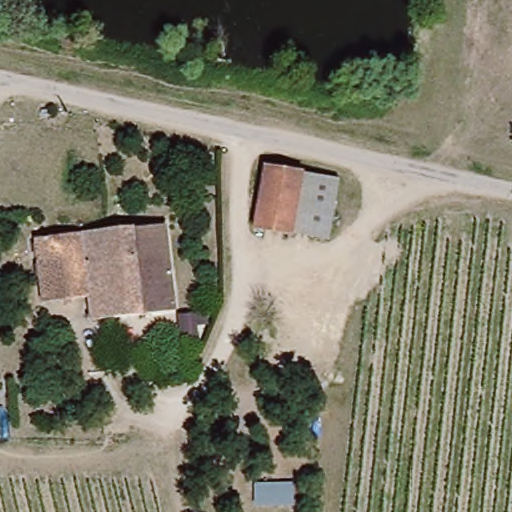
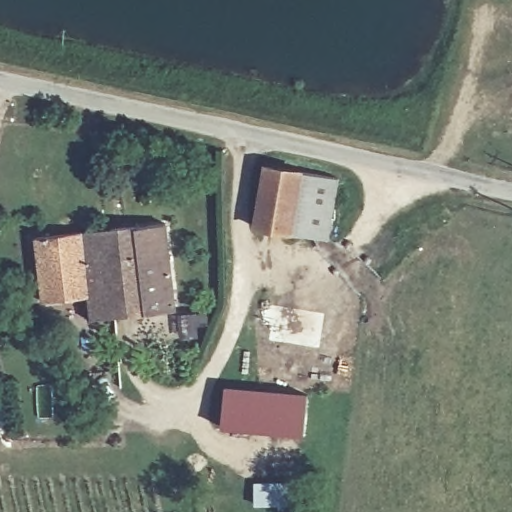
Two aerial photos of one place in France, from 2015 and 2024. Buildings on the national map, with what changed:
unchanged [(322,238),(249,221),(269,164),(337,182),(322,238)]
unchanged [(173,308),(109,312),(104,227),(166,221),(173,308)]
unchanged [(89,314),(88,294),(39,298),(33,232),(104,227),(109,312),(89,314)]
new [(225,387),(306,395),(304,436),(223,428),(225,387)]

